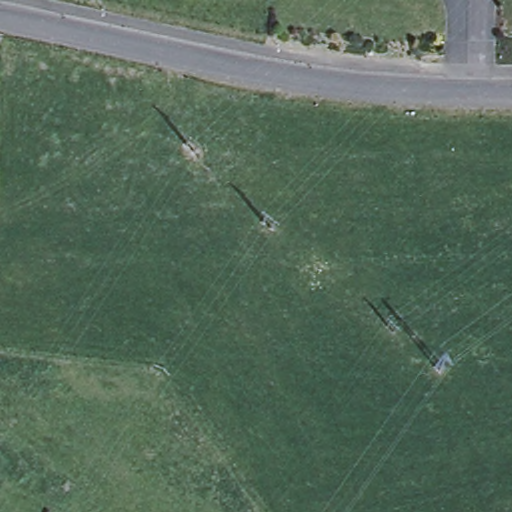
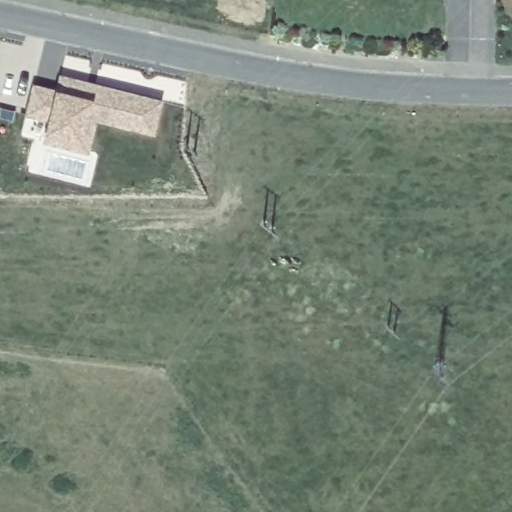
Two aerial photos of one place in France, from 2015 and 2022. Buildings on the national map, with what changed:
new [(50,121),(27,116),(34,87),(57,93),(60,78),(95,85),(161,102),(153,134),(95,121),(87,153),(45,143),(47,134),(50,121)]

